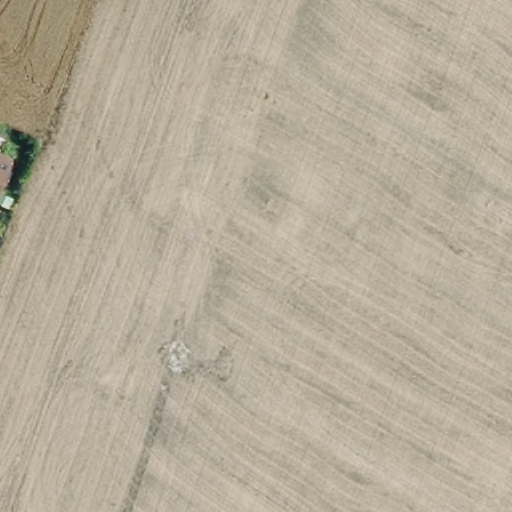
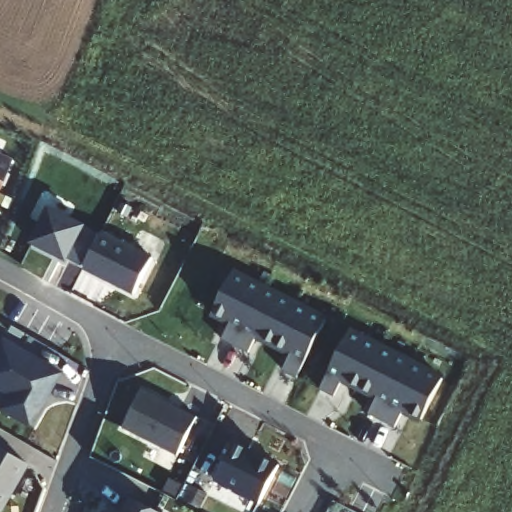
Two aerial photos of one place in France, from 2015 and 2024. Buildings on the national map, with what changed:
unchanged [(0,181),(0,153),(10,158),(0,181)]
new [(50,207),(100,233),(83,267),(33,242),(50,207)]
new [(100,233),(101,232),(151,257),(133,292),(83,267),(100,233)]
new [(235,272),(330,322),(298,382),(287,375),(293,361),(253,340),(246,353),(222,341),(230,327),(210,317),(235,272)]
new [(448,386),(425,428),(406,417),(398,432),(374,420),(381,404),(342,385),(335,398),(323,392),(352,334),(448,386)]
new [(60,372),(29,426),(0,409),(0,408),(8,393),(0,389),(0,341),(1,338),(60,372)]
new [(143,390),(197,417),(178,455),(123,427),(143,390)]
new [(236,438),(251,446),(249,450),(279,465),(260,502),(215,480),(236,438)]
new [(1,512),(0,511),(0,448),(28,464),(1,512)]
new [(127,496),(159,512),(121,512),(120,512),(127,496)]

